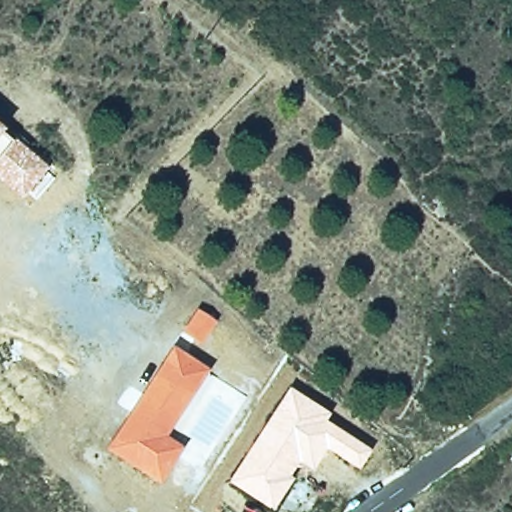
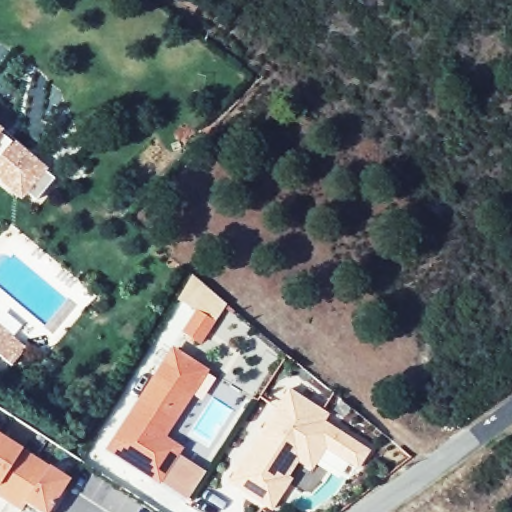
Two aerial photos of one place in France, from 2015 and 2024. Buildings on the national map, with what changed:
unchanged [(19,199),(0,183),(0,128),(48,168),(19,199)]
new [(0,327),(27,347),(13,365),(0,354),(0,327)]
unchanged [(172,345),(209,370),(167,435),(185,448),(159,485),(105,449),(172,345)]
unchanged [(287,387),(328,414),(325,421),(370,451),(359,471),(326,449),(312,469),(297,461),(287,473),(293,477),(270,509),(227,484),(287,387)]
new [(0,483),(0,434),(22,448),(0,483)]
new [(0,498),(0,483),(22,448),(48,466),(69,479),(47,512),(37,512),(25,504),(21,510),(0,498)]

